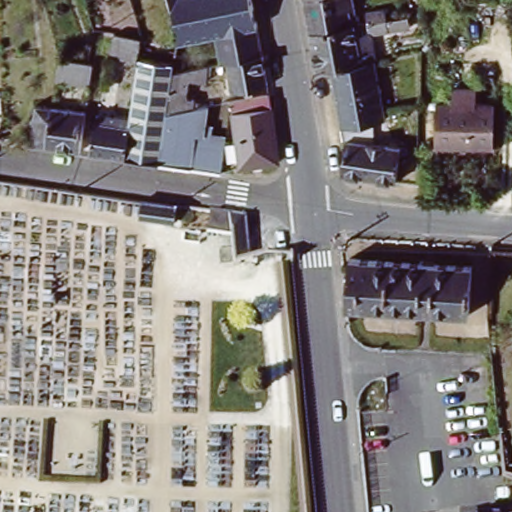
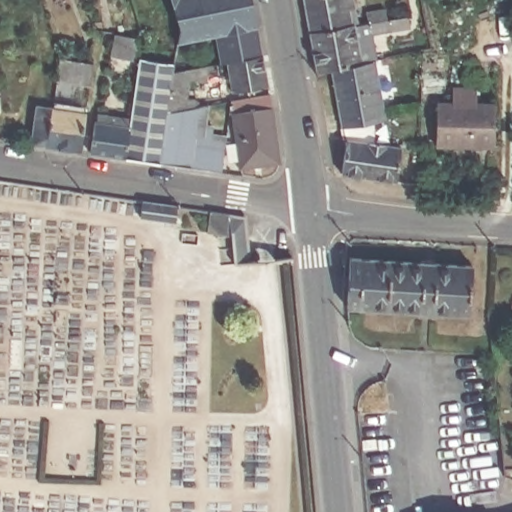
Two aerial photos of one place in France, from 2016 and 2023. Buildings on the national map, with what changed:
unchanged [(171,0),(252,0),(257,27),(215,35),(216,37),(176,44),(179,28),(171,0)]
unchanged [(351,25),(353,25),(353,27),(310,35),(303,0),(353,0),(355,9),(348,10),(351,25)]
unchanged [(331,68),(316,71),(310,35),(353,27),(367,24),(365,14),(385,10),(386,21),(388,33),(371,36),(373,50),(358,53),(360,63),(331,68)]
unchanged [(257,27),(262,56),(226,62),(221,63),(216,37),(215,35),(257,27)]
unchanged [(111,57),(115,35),(140,40),(136,62),(111,57)]
unchanged [(262,56),(268,88),(232,94),(226,62),(262,56)]
unchanged [(166,114),(158,164),(125,159),(131,116),(140,60),(173,66),(173,68),(185,71),(181,92),(170,90),(166,114)]
unchanged [(381,118),(343,125),(331,68),(360,63),(372,60),(381,118)]
unchanged [(99,71),(96,93),(61,89),(65,67),(99,71)]
unchanged [(438,108),(453,108),(455,93),(479,94),(478,108),(495,109),(493,150),(436,150),(438,108)]
unchanged [(231,106),(231,103),(270,96),(278,163),(240,167),(231,106)]
unchanged [(81,153),(45,148),(30,146),(35,106),(52,108),(87,113),(81,153)]
unchanged [(158,164),(166,114),(200,108),(208,107),(203,133),(226,137),(226,141),(221,174),(158,164)]
unchanged [(95,123),(97,123),(98,111),(131,116),(125,159),(90,154),(95,123)]
unchanged [(401,148),(396,183),(341,175),(346,140),(401,148)]
unchanged [(176,228),(136,225),(140,202),(177,208),(176,228)]
unchanged [(255,267),(234,269),(230,221),(251,224),(255,267)]
unchanged [(471,270),(468,320),(348,312),(350,264),(471,270)]

